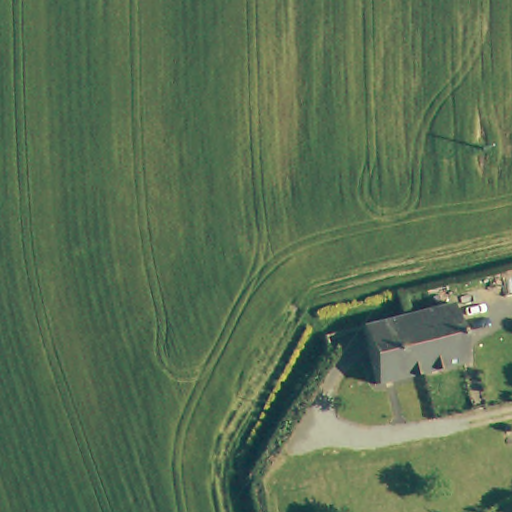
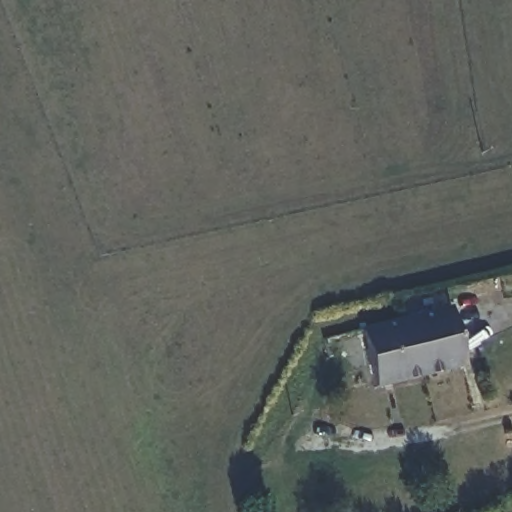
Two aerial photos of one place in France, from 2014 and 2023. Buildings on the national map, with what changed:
unchanged [(407,313),(450,303),(465,360),(423,371),(407,313)]
unchanged [(376,385),(361,325),(407,313),(423,371),(376,385)]

